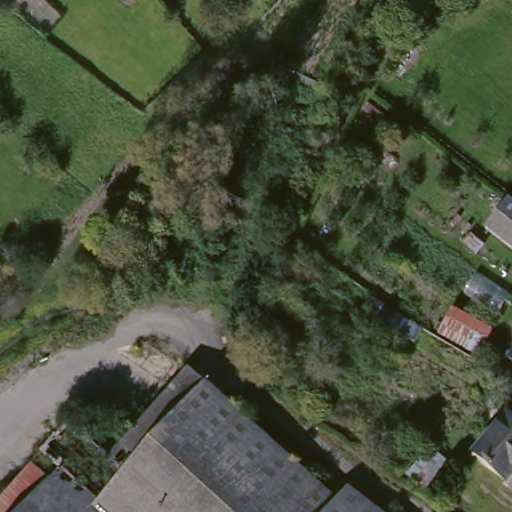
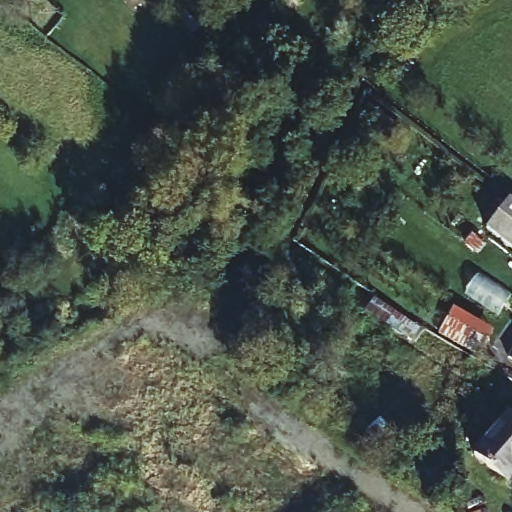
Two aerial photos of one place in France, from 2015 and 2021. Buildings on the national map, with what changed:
unchanged [(507,201),(512,204),(512,250),(485,229),(507,201)]
unchanged [(372,297),(422,329),(412,344),(362,312),(372,297)]
unchanged [(435,334),(450,307),(492,331),(476,359),(435,334)]
unchanged [(501,368),(512,353),(512,375),(501,368)]
demolished [(41,454),(69,424),(107,460),(125,475),(205,386),(335,504),(344,512),(22,512),(59,471),(41,454)]
unchanged [(512,420),(512,476),(505,485),(471,456),(506,415),(512,420)]
unchanged [(414,470),(405,481),(381,462),(391,451),(414,470)]
unchanged [(455,469),(431,500),(410,482),(433,452),(455,469)]

